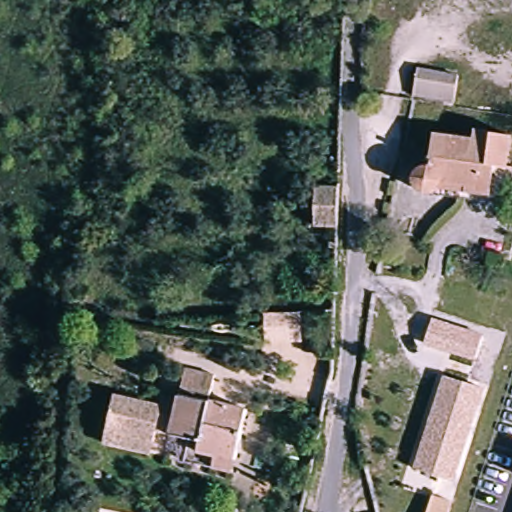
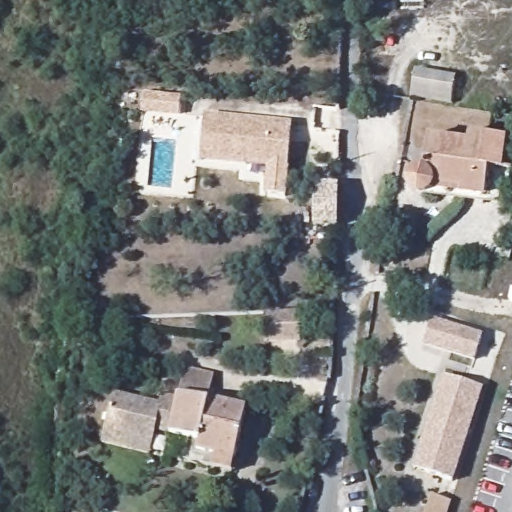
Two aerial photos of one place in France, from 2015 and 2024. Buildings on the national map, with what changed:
unchanged [(455,75),(448,107),(407,97),(411,67),(455,75)]
new [(199,162),(204,115),(293,122),(287,197),(265,196),(267,169),(199,162)]
unchanged [(421,190),(419,189),(415,186),(413,182),(413,176),(416,172),(420,169),(425,169),(431,170),(435,137),(472,142),(473,133),(510,137),(501,201),(421,190)]
unchanged [(311,187),(333,187),(332,227),(311,227),(311,187)]
new [(301,342),(267,342),(265,314),(300,312),(301,342)]
unchanged [(427,345),(434,320),(483,336),(476,361),(427,345)]
unchanged [(227,476),(210,470),(212,462),(195,455),(196,441),(164,433),(173,399),(182,371),(209,376),(203,402),(245,410),(227,476)]
unchanged [(413,470),(444,378),(482,390),(455,480),(413,470)]
unchanged [(164,433),(154,432),(148,456),(102,445),(114,393),(158,403),(161,395),(173,399),(164,433)]
unchanged [(446,502),(443,512),(422,512),(426,497),(446,502)]

